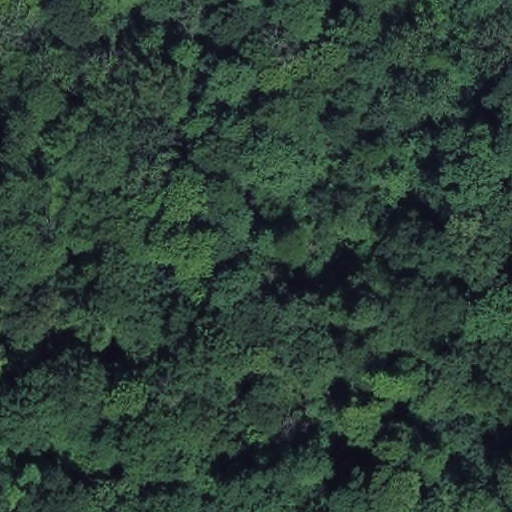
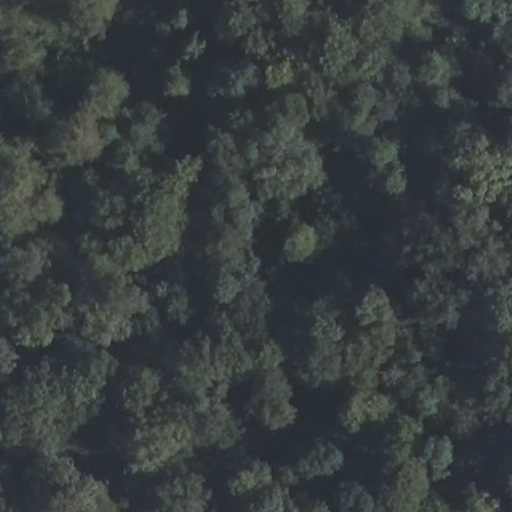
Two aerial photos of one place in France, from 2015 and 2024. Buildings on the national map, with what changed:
[]

